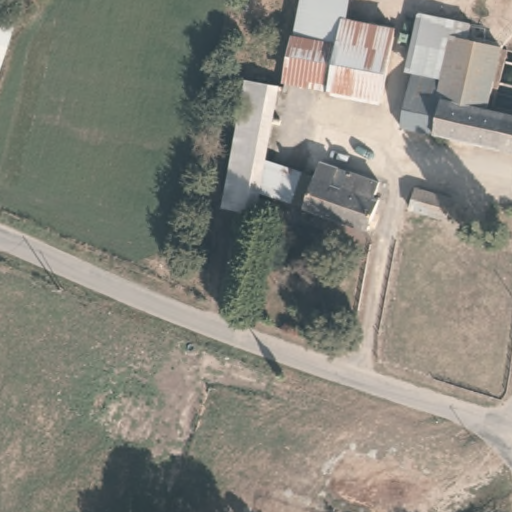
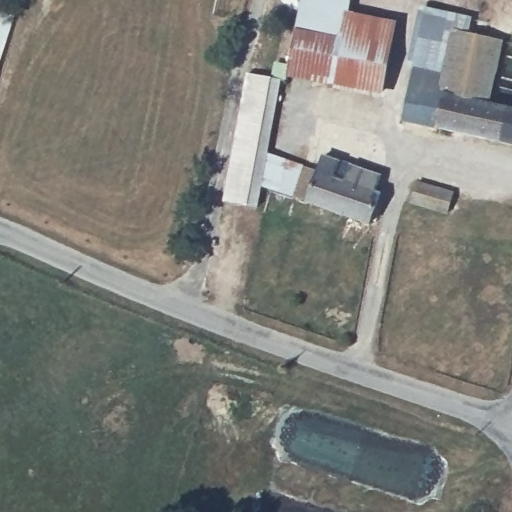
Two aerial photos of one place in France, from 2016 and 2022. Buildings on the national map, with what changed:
unchanged [(293,57),(304,0),(329,0),(328,10),(396,23),(386,86),(314,74),(310,93),(287,89),(289,80),(293,57)]
unchanged [(413,52),(424,1),(449,10),(438,57),(413,52)]
unchanged [(18,16),(0,74),(0,10),(18,16)]
unchanged [(475,101),(468,134),(394,117),(408,52),(413,52),(438,57),(449,10),(465,15),(462,32),(493,39),(489,59),(487,73),(481,102),(475,101)]
unchanged [(250,73),(289,80),(287,89),(281,87),(268,155),(262,187),(258,209),(226,202),(250,73)]
unchanged [(481,102),(512,108),(512,143),(468,134),(475,101),(481,102)]
unchanged [(268,155),(318,171),(306,202),(262,187),(268,155)]
unchanged [(383,176),(376,194),(380,195),(370,224),(308,202),(327,156),(383,176)]
unchanged [(421,177),(456,188),(451,209),(415,198),(421,177)]

